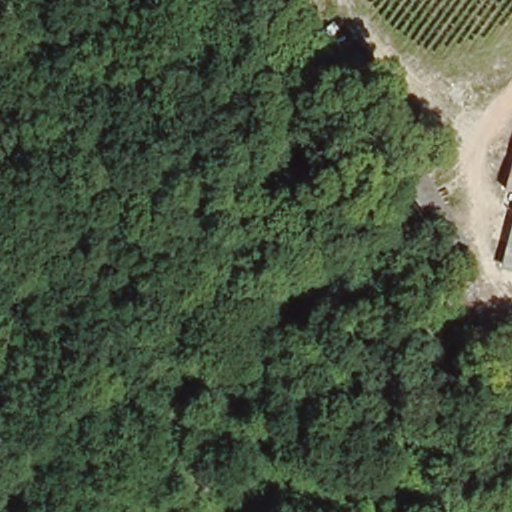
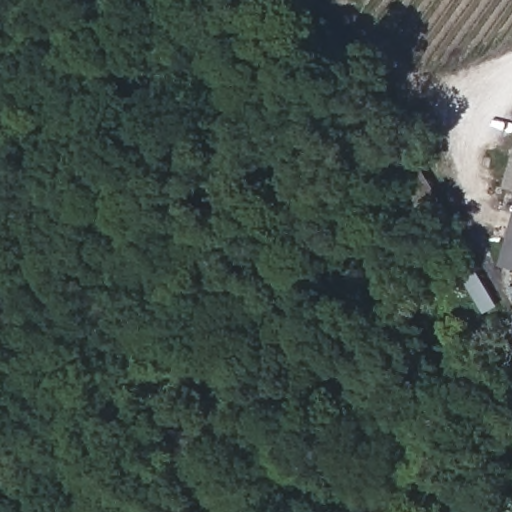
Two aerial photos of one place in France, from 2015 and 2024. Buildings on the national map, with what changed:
unchanged [(512,166),(512,190),(506,188),(512,166)]
unchanged [(512,234),(512,269),(504,267),(512,234)]

